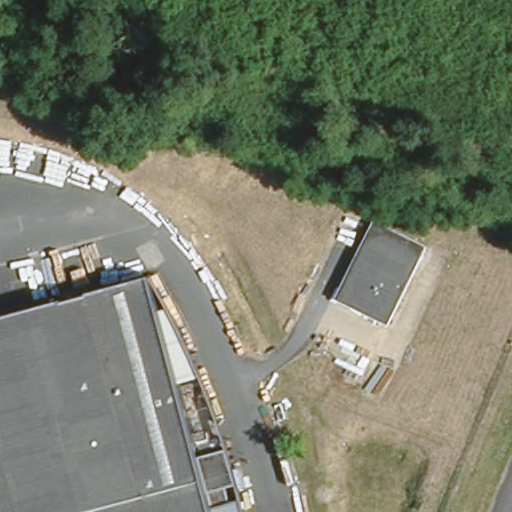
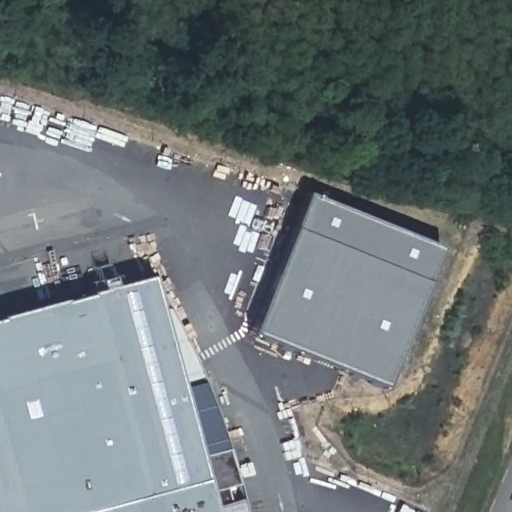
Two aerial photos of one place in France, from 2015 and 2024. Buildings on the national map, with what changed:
new [(441,238),(382,380),(247,323),(305,182),(441,238)]
demolished [(415,261),(387,316),(344,294),(372,239),(415,261)]
unchanged [(0,396),(0,315),(150,277),(197,459),(227,452),(240,495),(230,497),(233,512),(160,512),(181,460),(0,396)]
unchanged [(160,512),(0,512),(0,396),(181,460),(160,512)]

